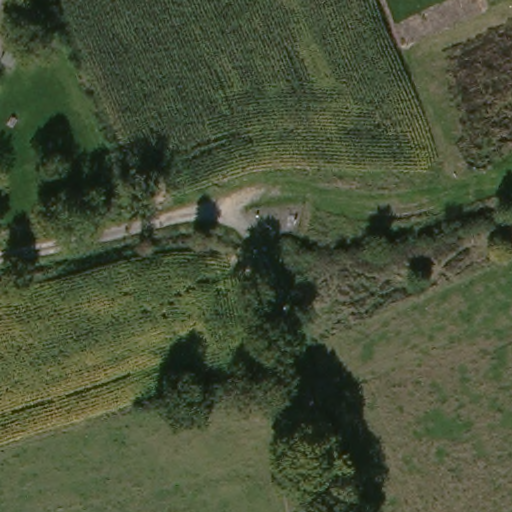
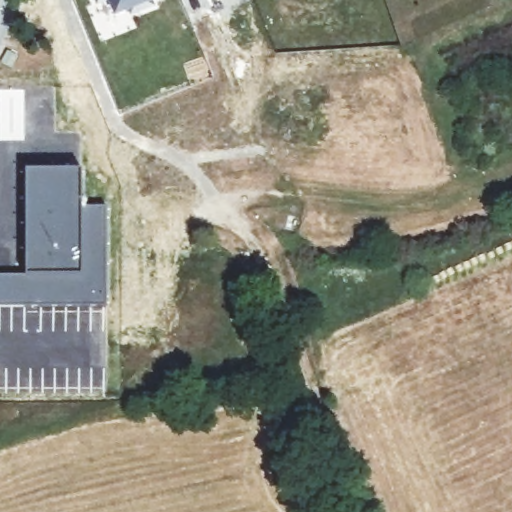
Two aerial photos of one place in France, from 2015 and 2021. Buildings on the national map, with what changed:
new [(97,2),(97,0),(103,0),(97,2)]
new [(131,13),(129,8),(114,14),(109,0),(151,0),(152,4),(131,13)]
unchanged [(17,22),(27,28),(22,39),(11,33),(17,22)]
new [(87,212),(112,212),(113,312),(32,314),(32,307),(0,307),(0,283),(32,282),(29,176),(86,175),(87,212)]

